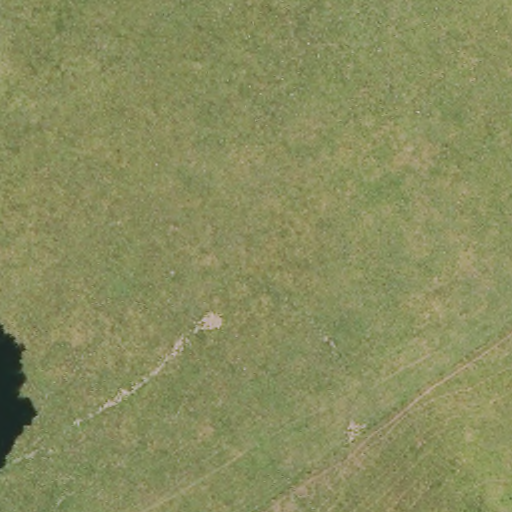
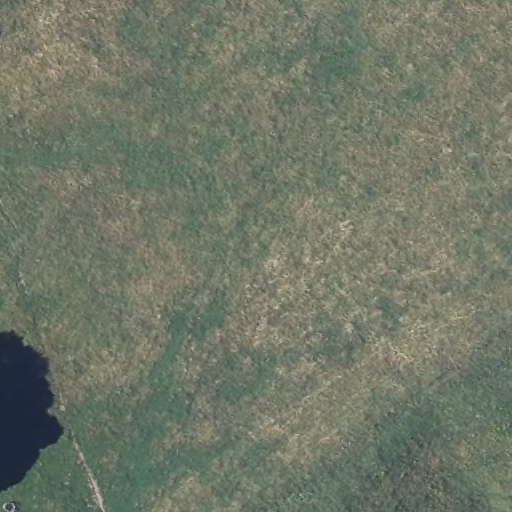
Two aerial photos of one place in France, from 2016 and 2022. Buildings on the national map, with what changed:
[]

